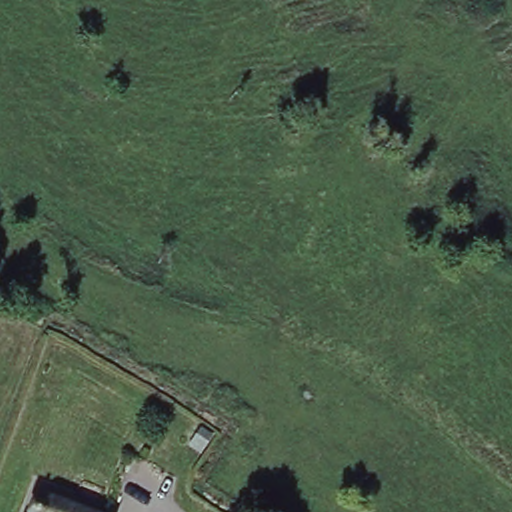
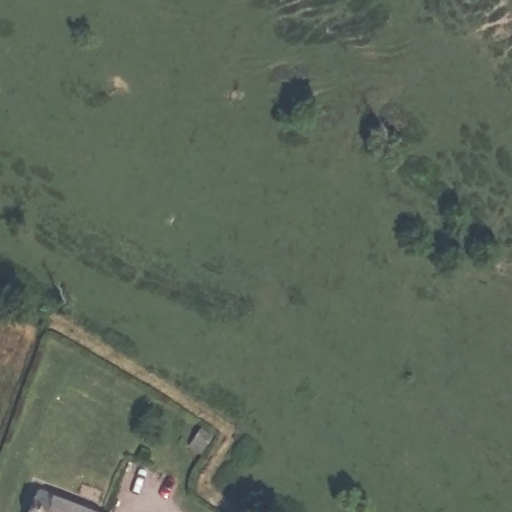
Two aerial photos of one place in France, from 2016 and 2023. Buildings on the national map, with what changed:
unchanged [(32,494),(91,512),(26,512),(32,494)]

